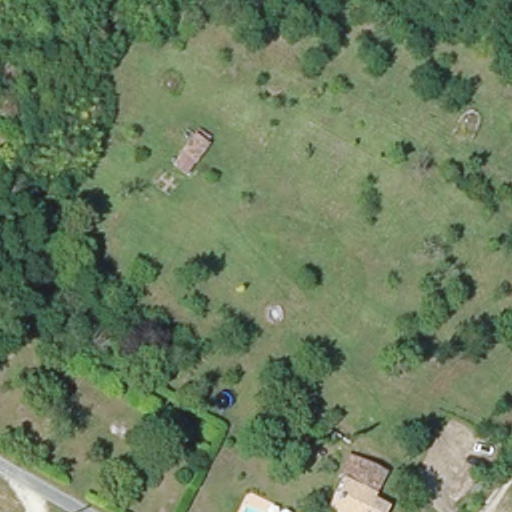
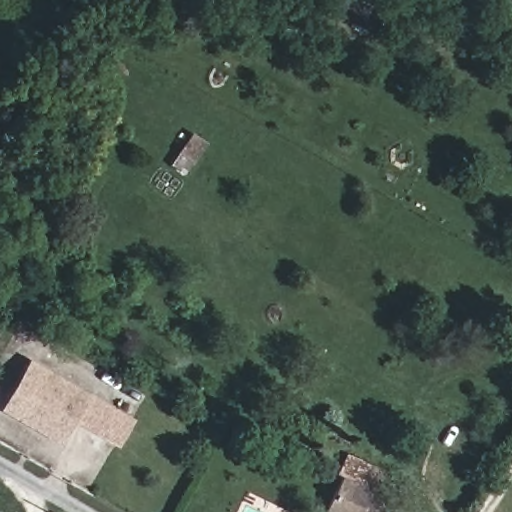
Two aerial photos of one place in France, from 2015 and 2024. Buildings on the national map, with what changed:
unchanged [(194,133),(210,144),(187,176),(172,166),(194,133)]
new [(0,409),(29,358),(91,392),(62,444),(0,409)]
unchanged [(348,477),(345,475),(357,454),(389,472),(372,499),(386,507),(383,512),(340,512),(331,507),(348,477)]

